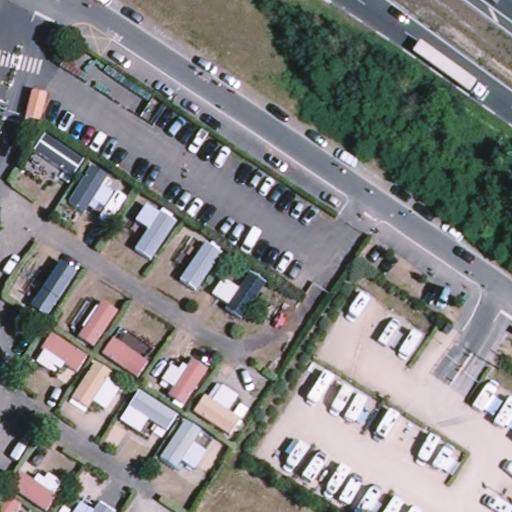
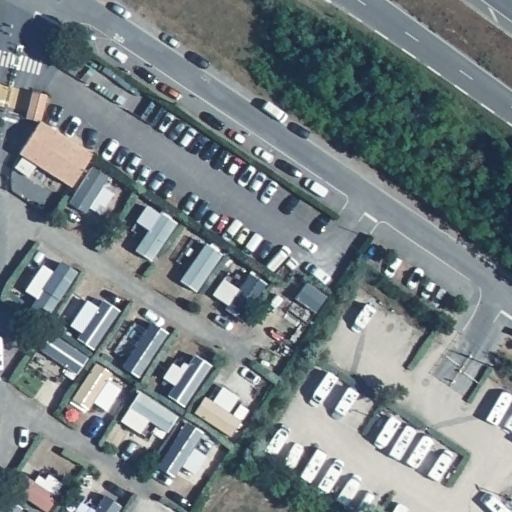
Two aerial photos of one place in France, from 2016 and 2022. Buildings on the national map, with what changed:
unchanged [(20,117),(26,91),(40,94),(34,121),(20,117)]
new [(91,153),(71,185),(19,152),(39,121),(91,153)]

